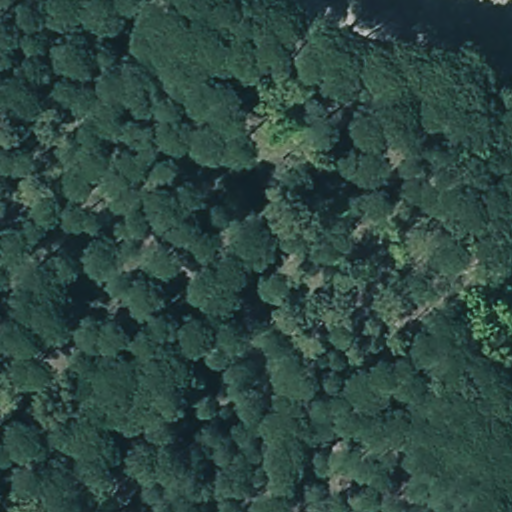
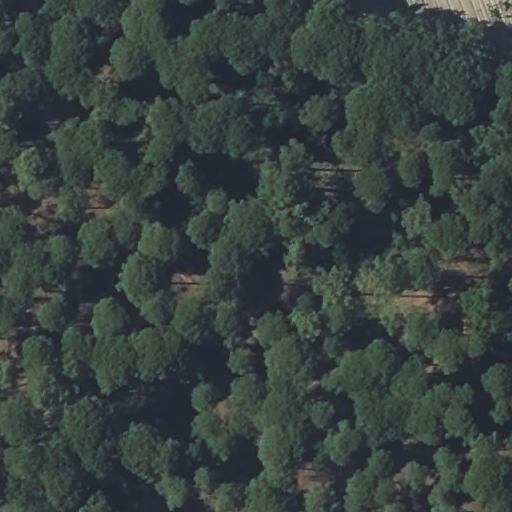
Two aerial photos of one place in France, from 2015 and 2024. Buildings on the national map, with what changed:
[]

